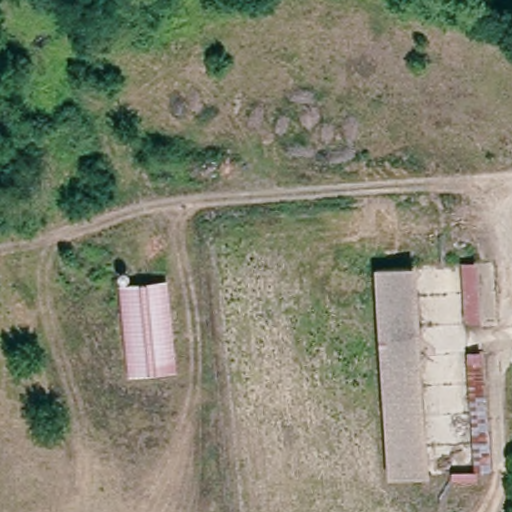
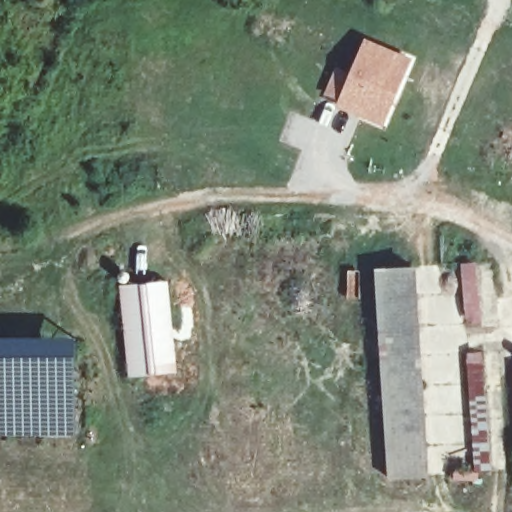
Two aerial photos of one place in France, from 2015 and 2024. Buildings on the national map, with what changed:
new [(335,65),(349,70),(363,36),(414,57),(383,127),(334,106),(336,101),(322,94),(335,65)]
unchanged [(376,274),(417,271),(430,482),(388,484),(376,274)]
unchanged [(121,286),(167,282),(176,372),(130,377),(121,286)]
new [(78,337),(75,435),(0,435),(0,337),(78,337)]
new [(473,473),(467,353),(483,353),(489,472),(473,473)]

